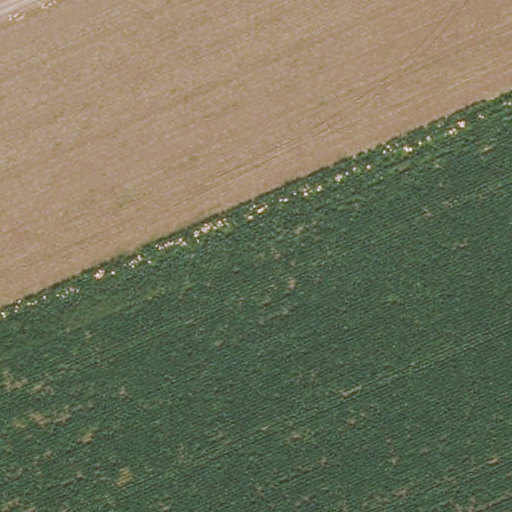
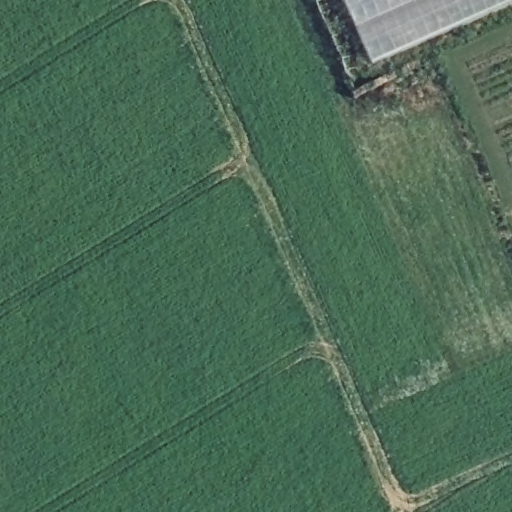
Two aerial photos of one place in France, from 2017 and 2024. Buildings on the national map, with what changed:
new [(341,0),(512,0),(512,6),(373,67),(341,0)]

